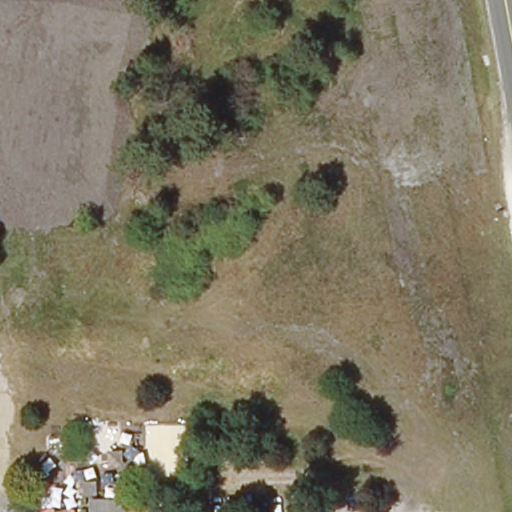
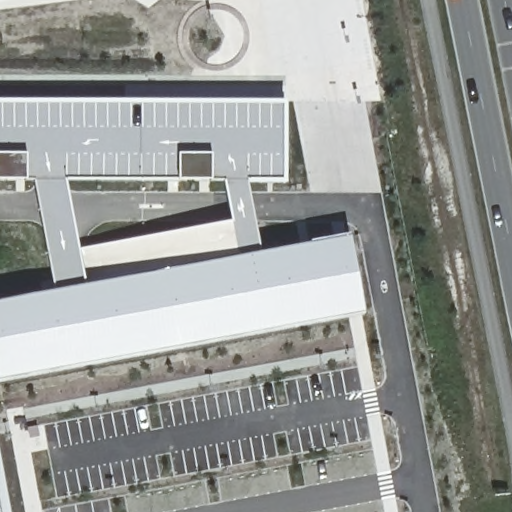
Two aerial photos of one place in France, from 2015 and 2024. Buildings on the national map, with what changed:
new [(286,184),(247,184),(261,251),(350,236),(364,313),(0,381),(0,301),(53,290),(33,180),(26,180),(24,180),(0,180),(0,101),(285,101),(286,184)]
new [(0,512),(0,457),(10,512),(0,512)]

